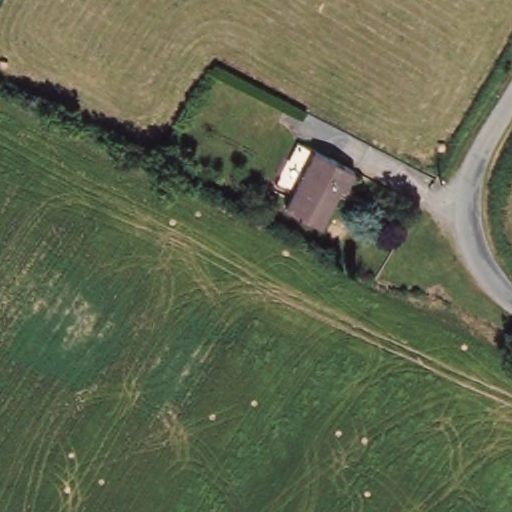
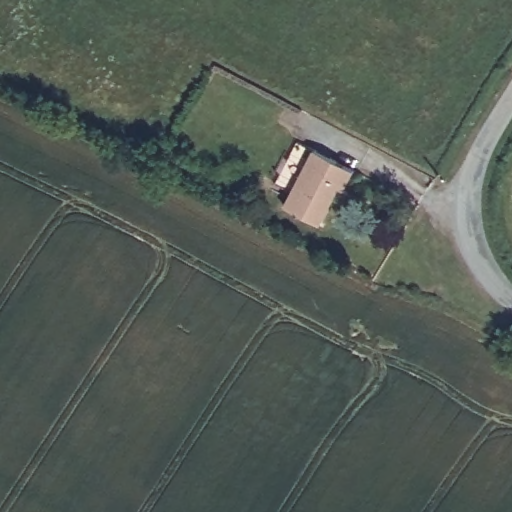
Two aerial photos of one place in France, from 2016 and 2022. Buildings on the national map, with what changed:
unchanged [(313,147),(354,167),(340,196),(333,192),(315,227),(281,210),(313,147)]

